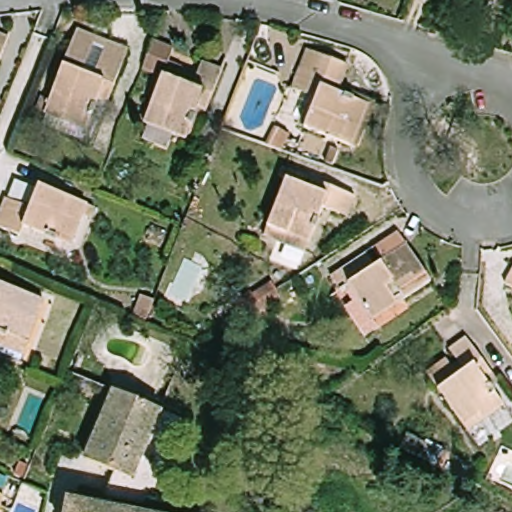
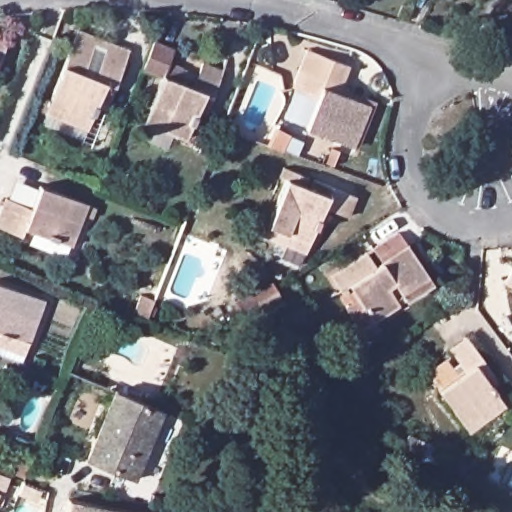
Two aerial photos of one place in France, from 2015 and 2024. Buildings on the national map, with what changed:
unchanged [(83,30),(100,36),(91,60),(103,65),(113,41),(132,50),(114,92),(107,88),(94,117),(56,101),(83,30)]
unchanged [(0,65),(0,37),(10,40),(0,65)]
unchanged [(155,75),(186,87),(197,63),(215,70),(198,110),(191,107),(178,138),(136,121),(155,75)]
unchanged [(319,100),(297,90),(306,69),(347,88),(343,98),(372,111),(354,152),(306,131),(319,100)]
unchanged [(267,238),(272,227),(291,182),(286,180),(289,170),(309,177),(305,188),(313,190),(317,182),(334,189),(359,200),(350,220),(325,210),(311,243),(306,255),(267,238)]
unchanged [(46,231),(42,239),(0,222),(0,221),(9,201),(31,210),(43,183),(92,202),(75,242),(46,231)]
unchanged [(362,333),(347,301),(359,294),(351,281),(340,285),(332,272),(370,249),(378,264),(418,243),(436,279),(370,314),(376,324),(362,333)]
unchanged [(507,281),(512,273),(512,284),(507,281)]
unchanged [(0,336),(0,288),(45,306),(29,347),(0,336)]
unchanged [(131,313),(140,293),(153,299),(145,319),(131,313)]
unchanged [(245,294),(256,314),(243,322),(231,303),(245,294)]
unchanged [(467,433),(442,391),(469,375),(458,353),(475,342),(498,380),(491,385),(506,412),(467,433)]
unchanged [(90,485),(98,463),(89,459),(116,389),(157,406),(131,475),(118,470),(110,492),(90,485)]
unchanged [(135,512),(69,512),(72,499),(135,512)]

